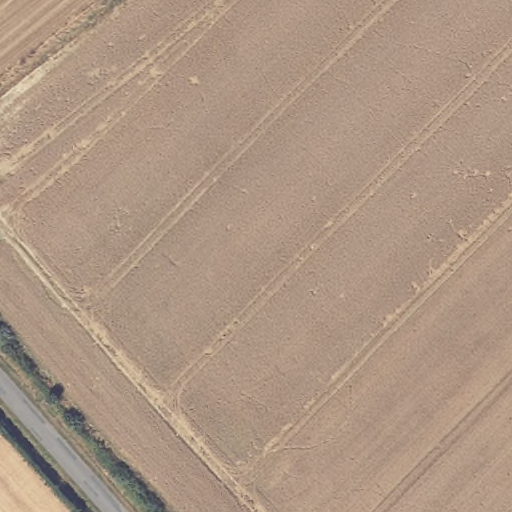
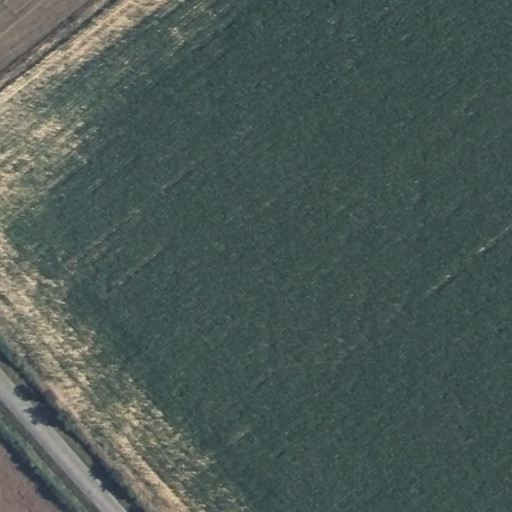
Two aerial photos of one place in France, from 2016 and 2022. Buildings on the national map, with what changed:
[]

